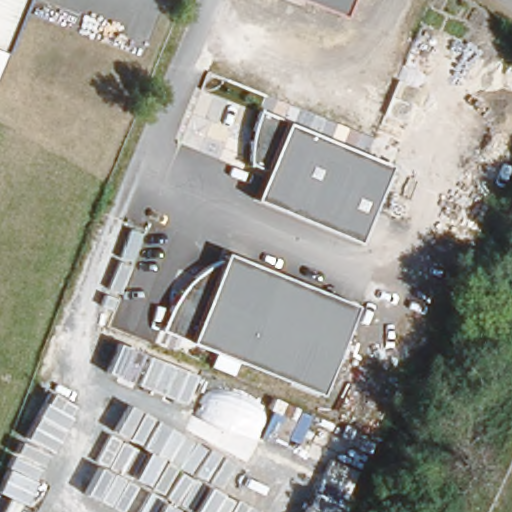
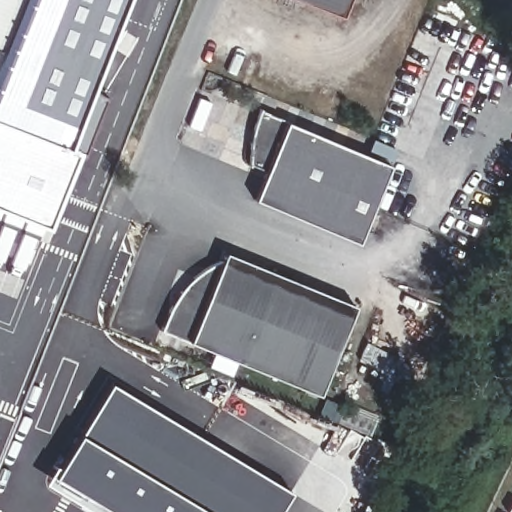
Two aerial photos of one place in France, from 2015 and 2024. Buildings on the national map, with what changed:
unchanged [(0,52),(0,0),(19,0),(0,52)]
new [(90,85),(104,93),(81,152),(77,150),(47,226),(0,208),(0,52),(19,0),(123,0),(90,85)]
unchanged [(340,20),(288,0),(347,0),(340,20)]
unchanged [(252,164),(253,138),(262,109),(288,121),(389,165),(356,241),(256,200),(268,170),(252,164)]
unchanged [(354,304),(319,394),(192,342),(164,330),(182,292),(194,277),(211,266),(224,260),(226,252),(354,304)]
new [(111,386),(287,492),(275,512),(92,512),(49,486),(111,386)]

